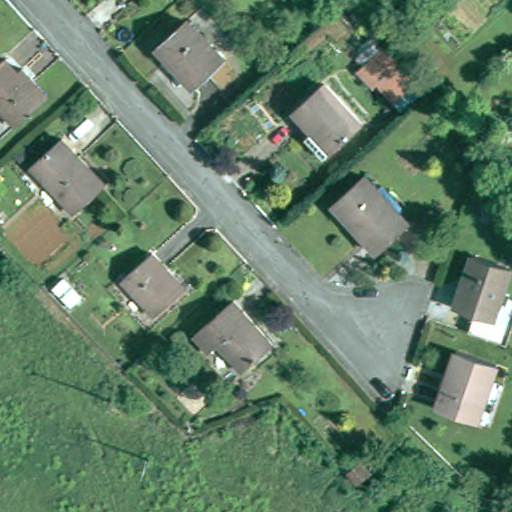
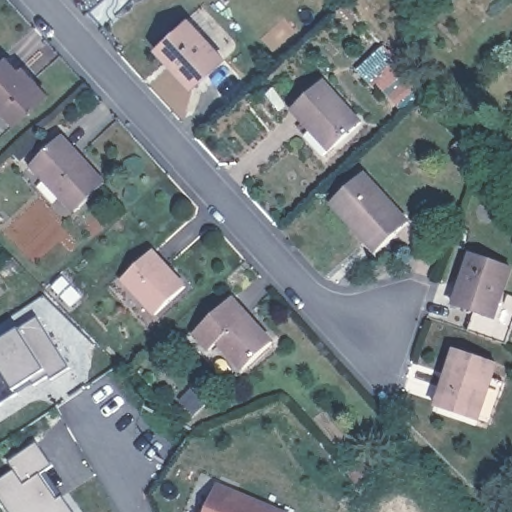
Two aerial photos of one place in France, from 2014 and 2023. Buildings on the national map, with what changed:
unchanged [(193,14),(230,54),(198,84),(161,44),(193,14)]
unchanged [(11,58),(24,70),(27,68),(52,95),(21,124),(10,112),(8,114),(0,104),(0,68),(11,58)]
unchanged [(379,62),(410,96),(397,108),(376,85),(372,89),(362,78),(379,62)]
unchanged [(330,79),(365,117),(328,152),(310,132),(317,125),(300,107),(330,79)]
unchanged [(67,133),(110,179),(80,207),(37,161),(67,133)]
unchanged [(464,137),(480,156),(472,177),(460,165),(465,161),(457,153),(455,145),(464,137)]
unchanged [(370,235),(347,210),(338,200),(343,195),(370,170),(415,219),(388,244),(382,249),(370,235)]
unchanged [(460,295),(478,245),(512,256),(512,272),(508,284),(512,285),(512,334),(511,335),(475,322),(481,302),(460,295)]
unchanged [(153,253),(185,288),(156,315),(124,280),(153,253)]
unchanged [(232,300),(271,343),(242,370),(217,344),(210,351),(195,334),(232,300)]
new [(32,379),(13,392),(0,402),(0,342),(20,330),(38,319),(70,368),(51,379),(50,376),(35,386),(32,379)]
unchanged [(450,382),(463,345),(503,359),(483,416),(447,404),(443,402),(450,382)]
new [(7,464),(36,444),(52,468),(45,473),(61,498),(72,512),(7,512),(0,502),(0,481),(13,473),(7,464)]
new [(218,483),(288,512),(206,512),(218,483)]

